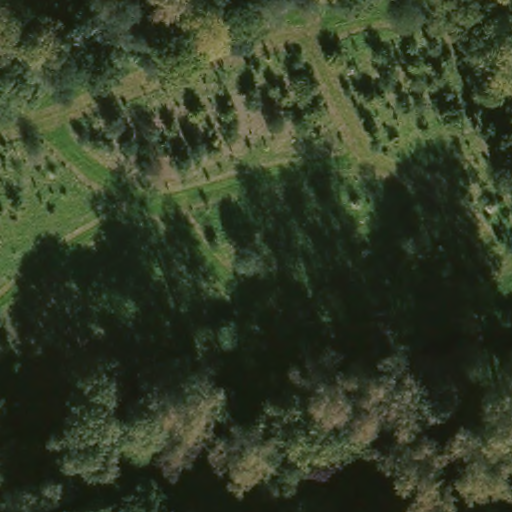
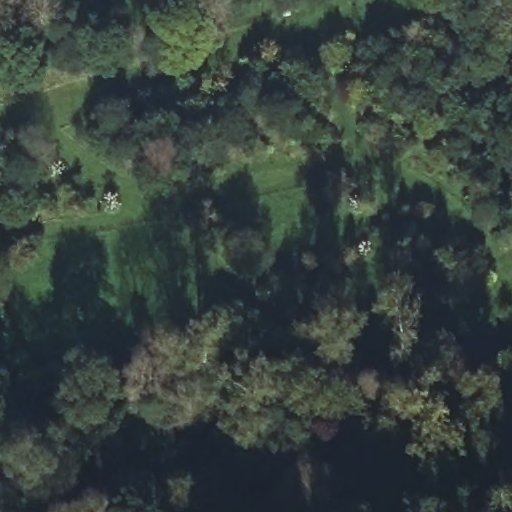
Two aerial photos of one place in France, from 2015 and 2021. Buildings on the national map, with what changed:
[]

